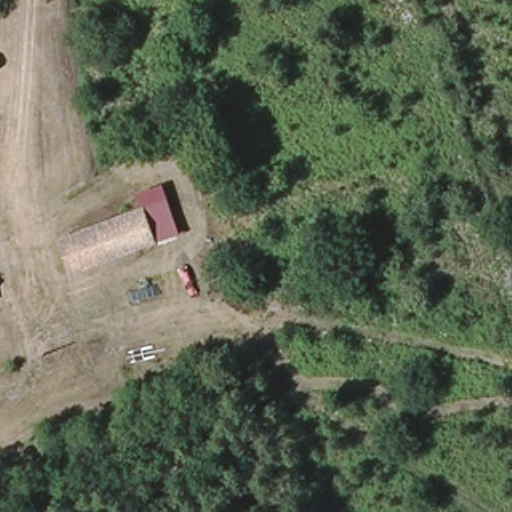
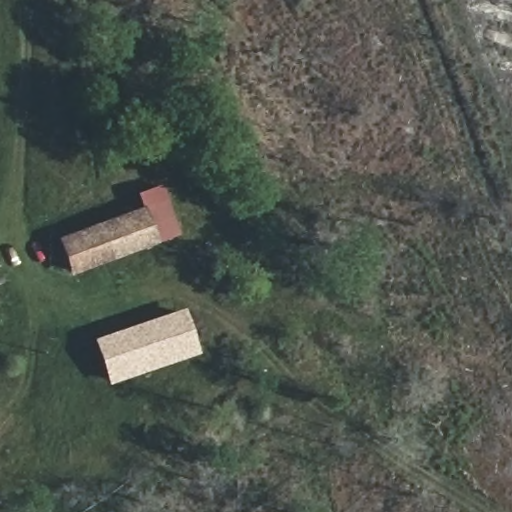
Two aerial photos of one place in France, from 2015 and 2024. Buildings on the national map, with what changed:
unchanged [(98,223),(140,209),(152,242),(112,257),(98,223)]
unchanged [(55,237),(98,223),(112,257),(69,273),(55,237)]
new [(183,311),(197,353),(107,383),(95,340),(183,311)]

